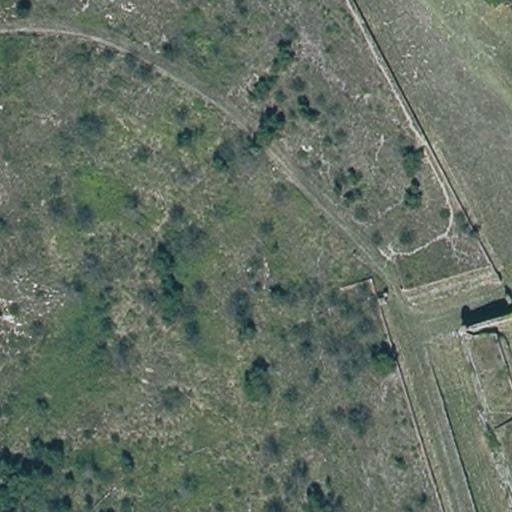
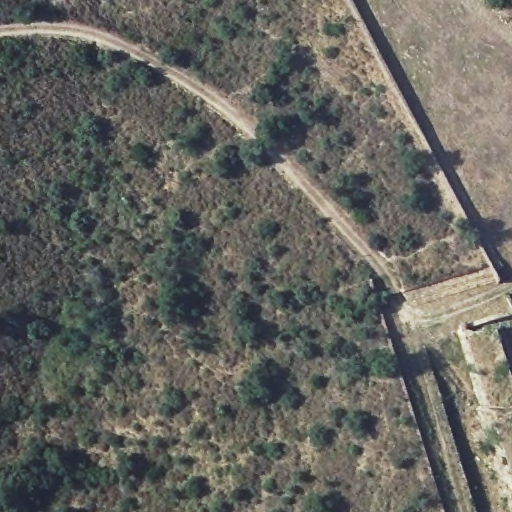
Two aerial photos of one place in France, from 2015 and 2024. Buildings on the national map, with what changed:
unchanged [(512,316),(512,512),(453,337),(512,316)]

